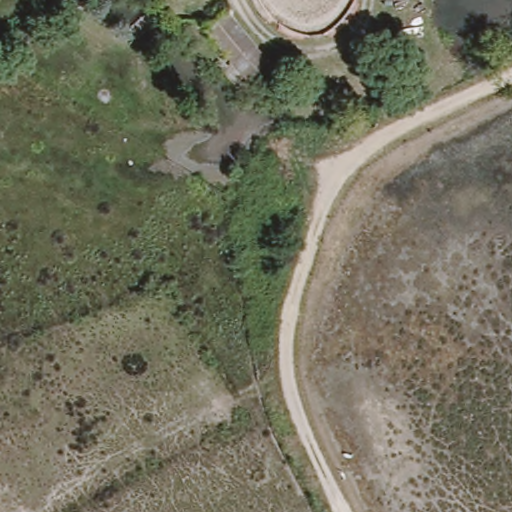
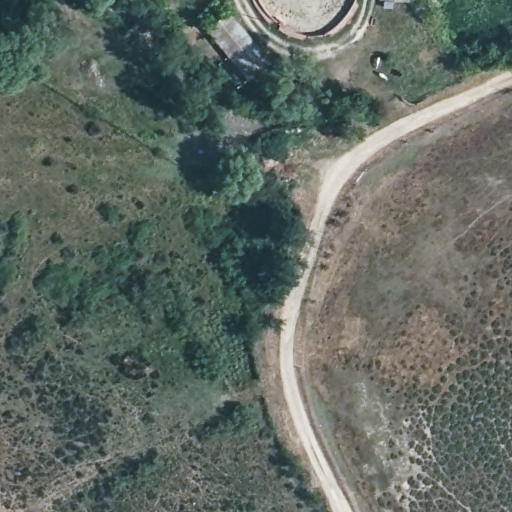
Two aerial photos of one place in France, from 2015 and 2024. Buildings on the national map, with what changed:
unchanged [(268,61),(247,79),(202,28),(223,11),(268,61)]

